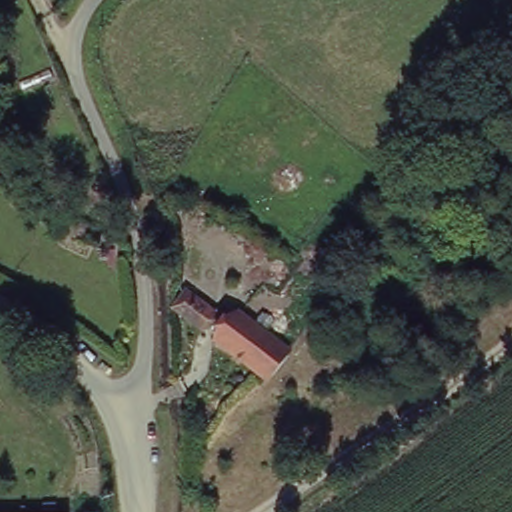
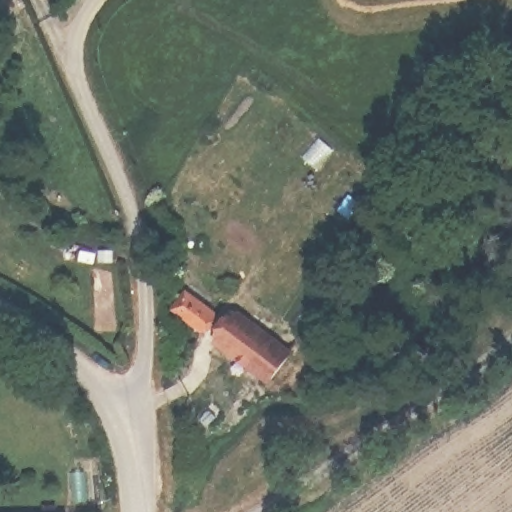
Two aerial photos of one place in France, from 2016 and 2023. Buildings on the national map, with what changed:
unchanged [(212,318),(200,336),(170,314),(181,297),(212,318)]
unchanged [(268,386),(212,346),(233,320),(243,327),(251,318),(265,328),(257,337),(288,361),(268,386)]

